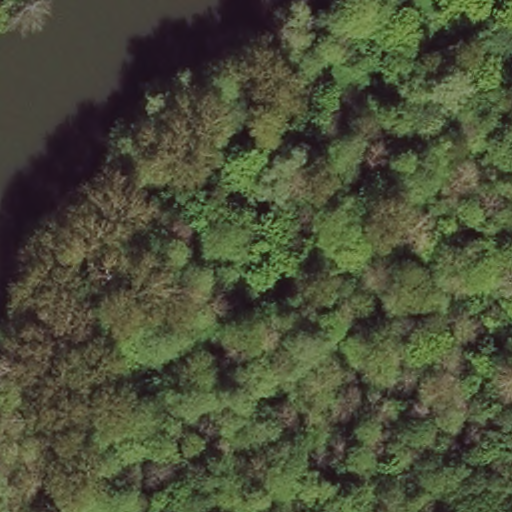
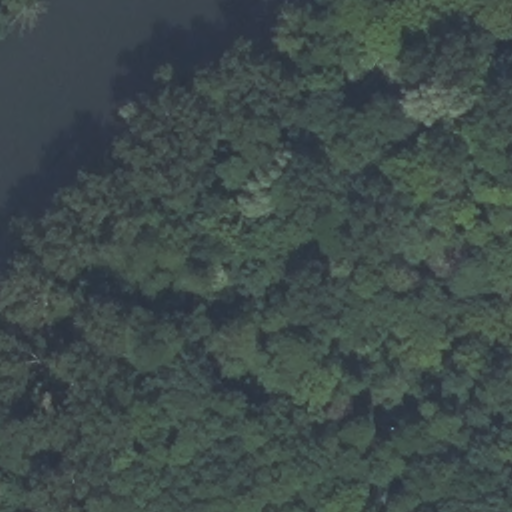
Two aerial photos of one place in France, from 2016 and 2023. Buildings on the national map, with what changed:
[]

